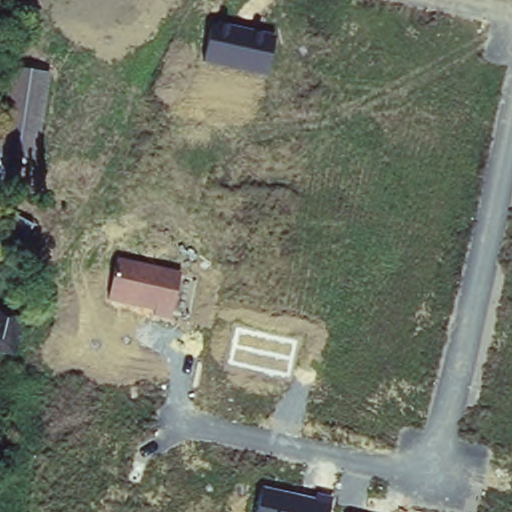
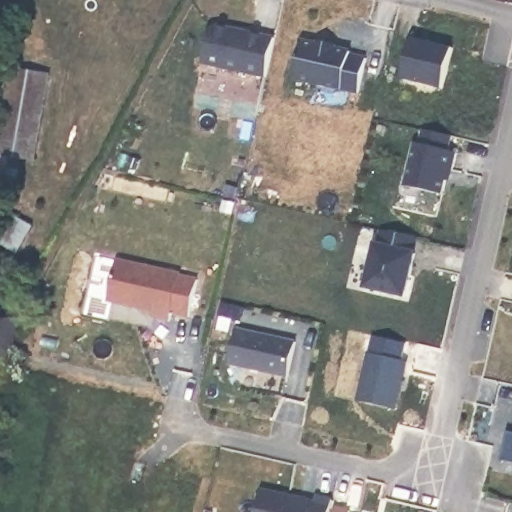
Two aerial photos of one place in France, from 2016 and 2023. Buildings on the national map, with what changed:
unchanged [(266,77),(204,65),(212,22),(276,35),(266,77)]
new [(444,87),(404,77),(414,37),(454,46),(444,87)]
new [(304,41),(323,45),(323,42),(337,46),(337,47),(352,51),(351,54),(368,57),(360,92),(296,77),(304,41)]
unchanged [(34,161),(23,158),(17,185),(0,183),(0,122),(7,69),(46,75),(34,161)]
new [(452,136),(449,150),(458,152),(453,170),(449,169),(444,194),(406,186),(419,128),(452,136)]
new [(449,169),(453,170),(451,181),(447,180),(449,169)]
new [(0,249),(0,227),(7,212),(33,226),(15,257),(0,249)]
new [(417,237),(414,252),(416,253),(406,296),(368,287),(377,245),(379,245),(383,230),(417,237)]
unchanged [(190,317),(172,315),(171,321),(152,317),(154,311),(109,302),(117,260),(198,277),(190,317)]
unchanged [(6,360),(0,358),(0,312),(20,318),(6,360)]
new [(238,329),(296,342),(289,377),(230,363),(238,329)]
new [(397,411),(357,402),(367,355),(407,361),(397,411)]
new [(501,460),(507,432),(512,433),(512,462),(501,460)]
unchanged [(257,512),(262,490),(315,500),(316,496),(332,500),(330,512),(257,512)]

